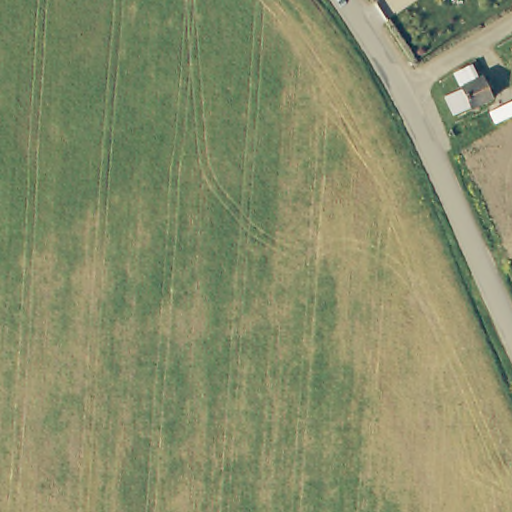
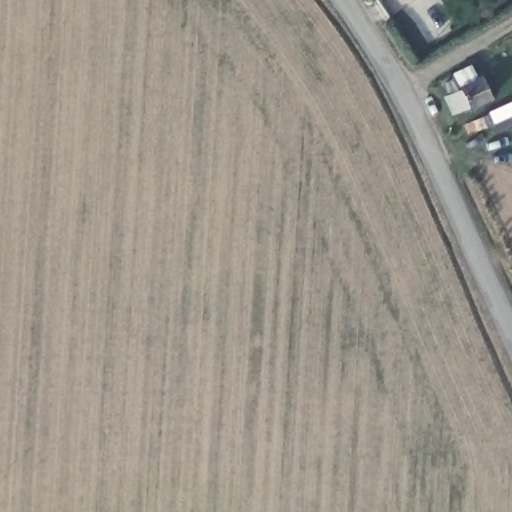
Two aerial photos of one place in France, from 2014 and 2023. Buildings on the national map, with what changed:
unchanged [(471,104),(464,96),(457,101),(454,94),(459,90),(458,85),(479,73),(490,95),(471,104)]

